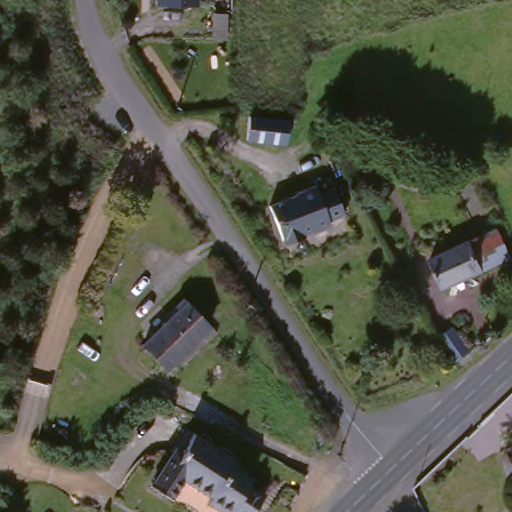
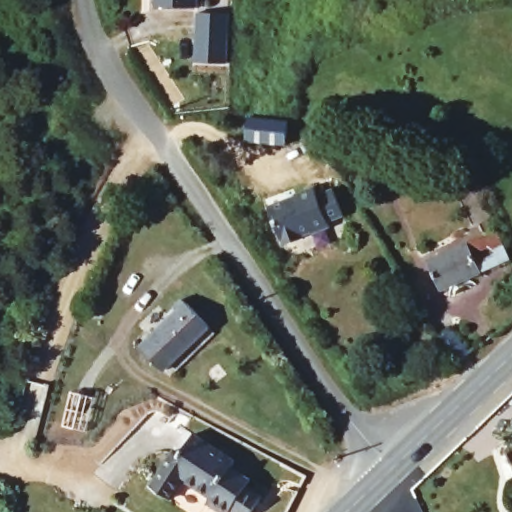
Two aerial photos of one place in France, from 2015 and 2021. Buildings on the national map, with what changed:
unchanged [(165,1),(165,0),(208,0),(208,2),(165,1)]
new [(196,12),(228,13),(226,63),(194,62),(196,12)]
demolished [(214,14),(226,14),(224,40),(212,40),(214,14)]
unchanged [(246,115),(289,119),(287,142),(244,139),(246,115)]
unchanged [(328,221),(329,227),(312,233),(310,227),(301,231),(303,237),(282,244),(268,206),(296,195),(296,193),(314,186),(317,194),(334,188),(344,215),(328,221)]
unchanged [(497,228),(510,258),(443,289),(429,259),(497,228)]
unchanged [(142,347),(187,303),(209,326),(164,370),(142,347)]
unchanged [(470,352),(454,363),(437,337),(453,327),(470,352)]
unchanged [(151,482),(176,445),(181,448),(194,428),(236,456),(232,462),(251,475),(247,481),(263,492),(249,512),(241,512),(231,506),(228,511),(207,497),(211,491),(184,473),(170,494),(151,482)]

